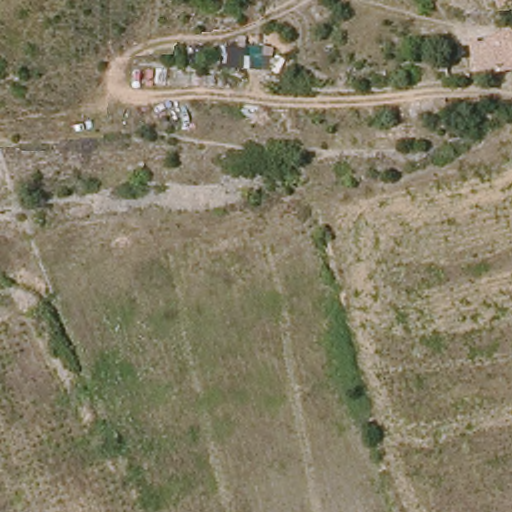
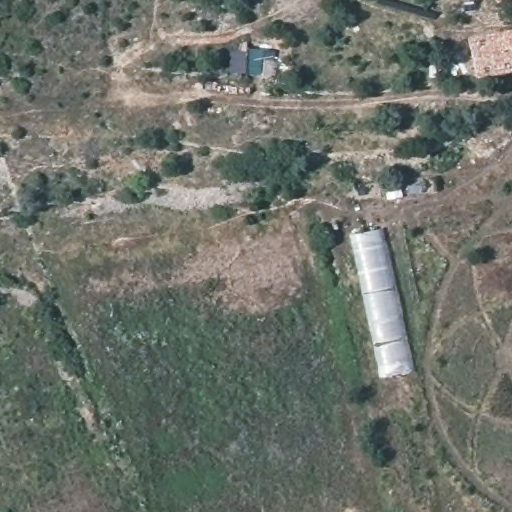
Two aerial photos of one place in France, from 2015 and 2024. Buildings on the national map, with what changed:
unchanged [(505,36),(505,30),(512,28),(512,71),(477,77),(470,42),(505,36)]
new [(386,227),(413,371),(380,377),(351,235),(386,227)]

